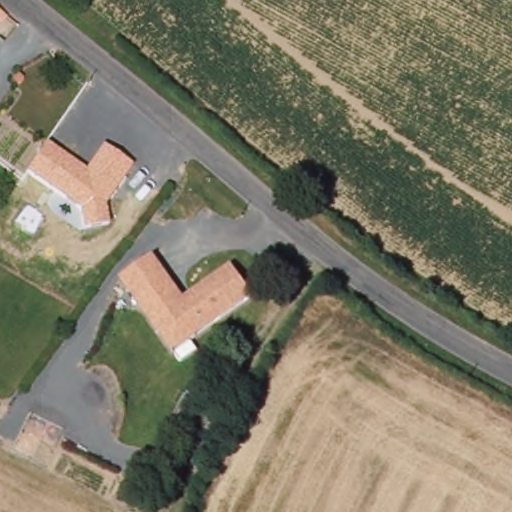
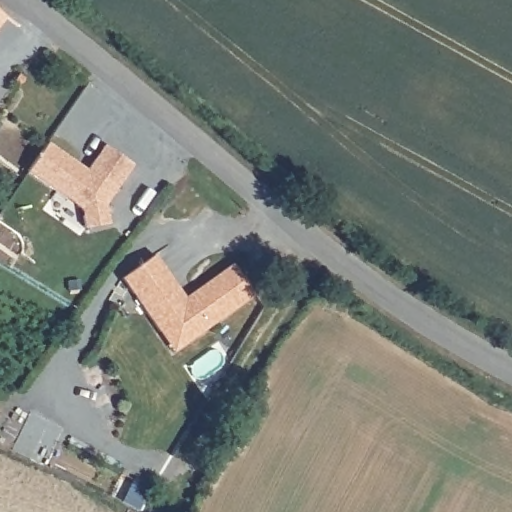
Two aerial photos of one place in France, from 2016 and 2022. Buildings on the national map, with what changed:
unchanged [(0,20),(0,11),(4,15),(0,20)]
unchanged [(48,145),(86,171),(104,146),(133,167),(104,205),(109,225),(82,228),(79,210),(27,174),(48,145)]
unchanged [(124,277),(158,255),(188,296),(236,262),(258,293),(174,349),(124,277)]

